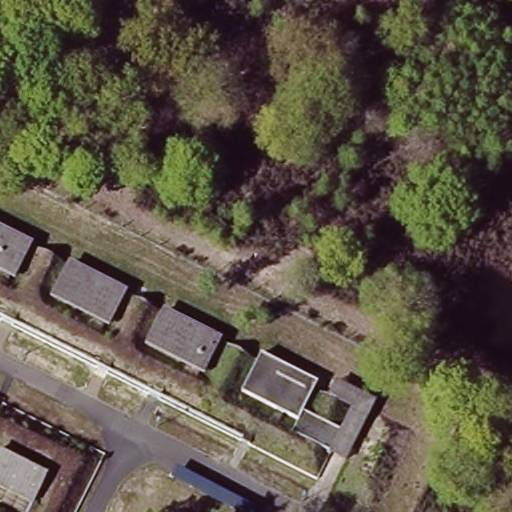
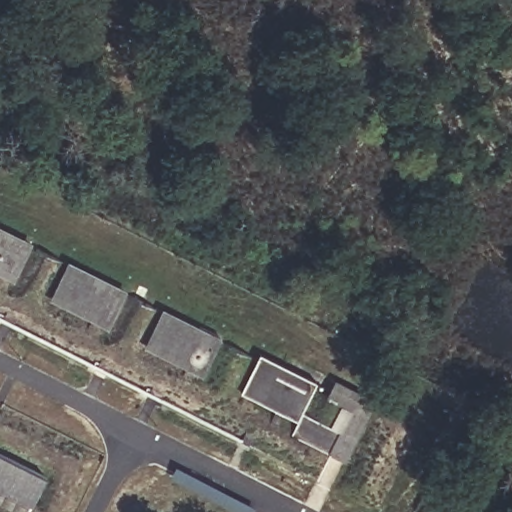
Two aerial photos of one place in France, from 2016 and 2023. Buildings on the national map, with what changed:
unchanged [(16,271),(0,263),(0,227),(30,242),(16,271)]
unchanged [(78,268),(129,295),(114,322),(64,295),(78,268)]
unchanged [(170,313),(222,342),(210,369),(157,340),(170,313)]
unchanged [(262,360),(312,386),(300,413),(247,386),(262,360)]
unchanged [(339,430),(351,408),(327,396),(335,377),(375,399),(345,458),(290,431),(300,413),(302,409),(339,430)]
unchanged [(50,474),(39,498),(0,478),(0,462),(5,452),(50,474)]

